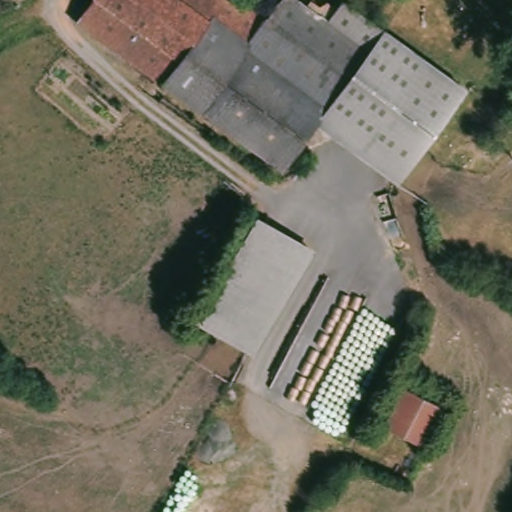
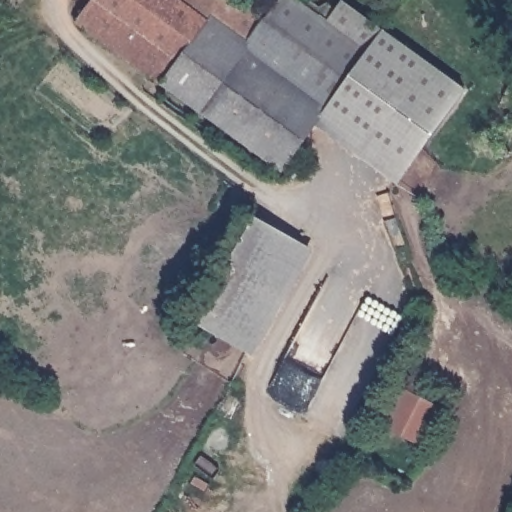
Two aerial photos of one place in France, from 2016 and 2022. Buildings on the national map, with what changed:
unchanged [(177,0),(204,19),(156,85),(70,23),(72,20),(87,0),(177,0)]
unchanged [(271,0),(295,0),(325,23),(341,1),(382,33),(322,111),(277,172),(277,173),(156,85),(204,19),(177,0),(240,0),(260,15),(271,0)]
unchanged [(462,91),(405,169),(322,111),(382,33),(462,91)]
unchanged [(313,250),(252,355),(195,322),(256,217),(313,250)]
unchanged [(443,412),(426,448),(390,430),(407,394),(443,412)]

